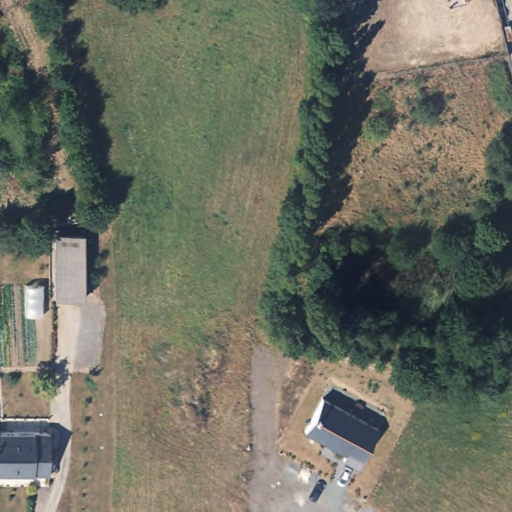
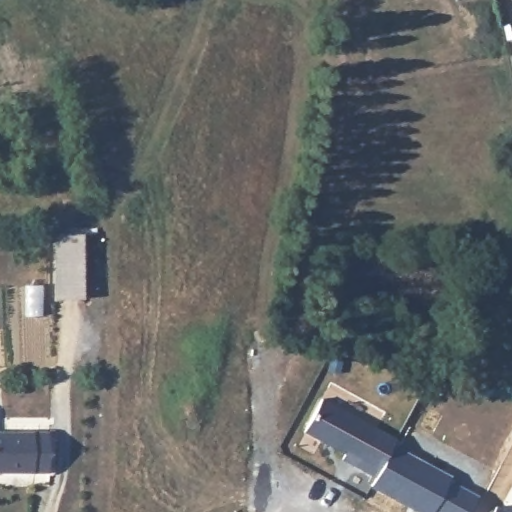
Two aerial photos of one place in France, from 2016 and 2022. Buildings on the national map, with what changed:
unchanged [(83,232),(83,297),(54,297),(54,232),(83,232)]
unchanged [(342,460),(344,455),(304,432),(322,401),(377,428),(355,466),(342,460)]
new [(398,439),(395,444),(453,477),(451,481),(480,496),(471,512),(417,512),(371,487),(375,477),(355,466),(377,428),(398,439)]
unchanged [(0,479),(0,438),(53,439),(51,480),(0,479)]

